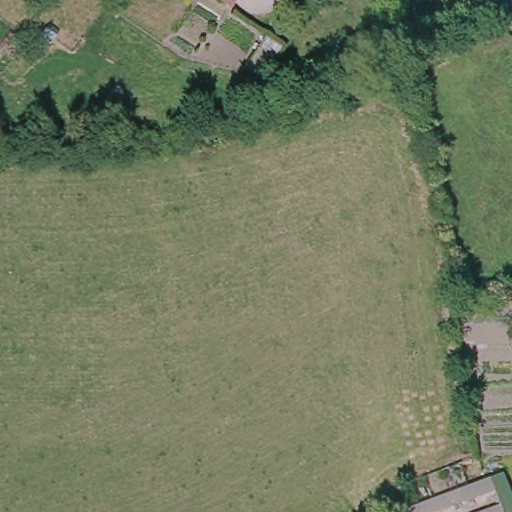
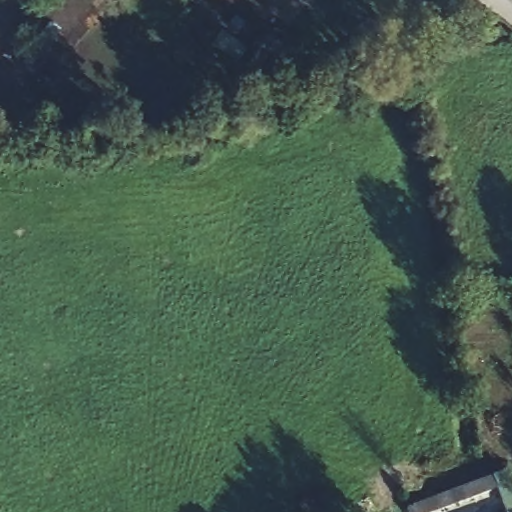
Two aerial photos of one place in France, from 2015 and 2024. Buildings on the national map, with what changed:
unchanged [(225,5),(218,0),(229,0),(225,5)]
unchanged [(486,512),(407,512),(482,480),(489,478),(495,493),(500,507),(502,512),(488,512),(487,511),(486,512)]

